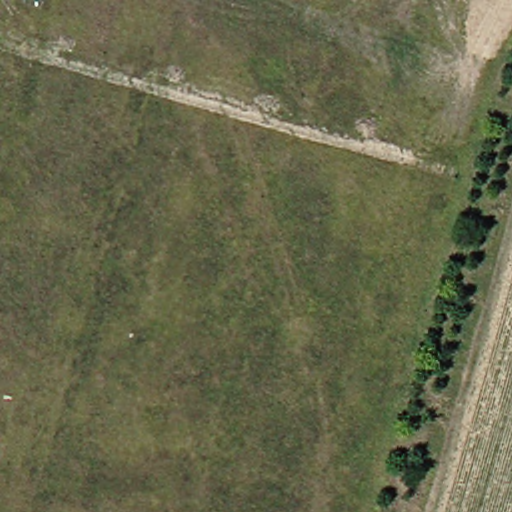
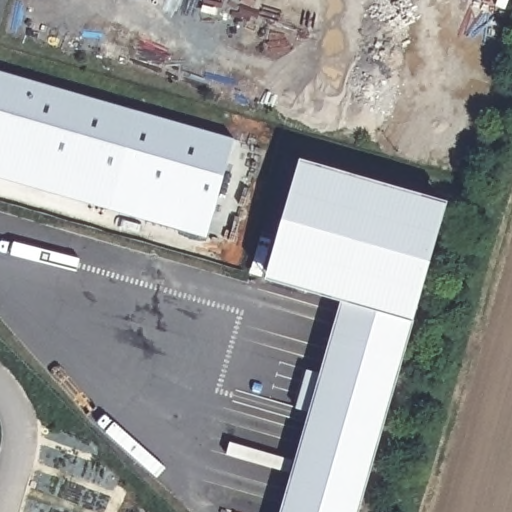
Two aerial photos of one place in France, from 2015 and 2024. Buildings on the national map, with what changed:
new [(140,112),(111,211),(0,179),(0,71),(140,112)]
new [(140,112),(235,139),(207,238),(111,211),(140,112)]
new [(265,278),(298,153),(450,196),(361,512),(284,512),(344,300),(265,278)]

